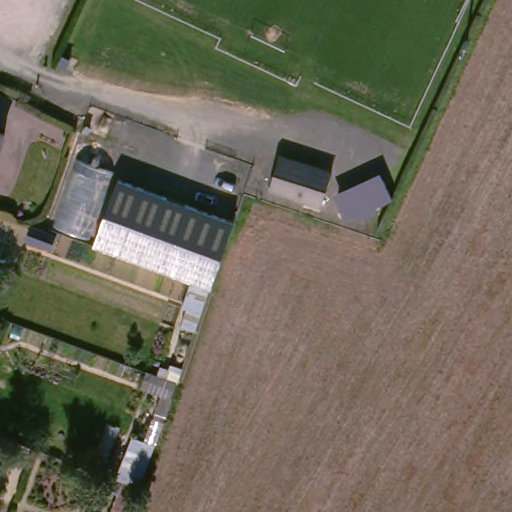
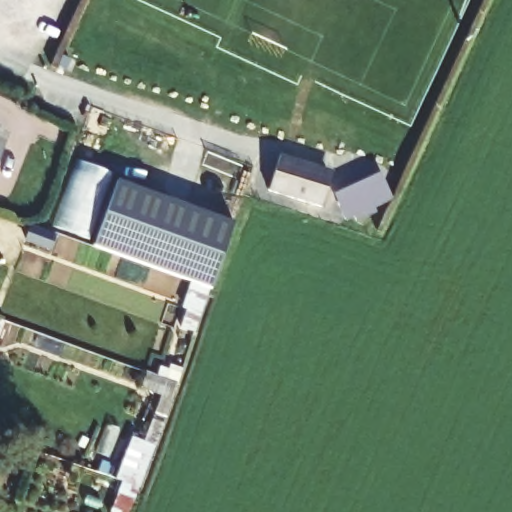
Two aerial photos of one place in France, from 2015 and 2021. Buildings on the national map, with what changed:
unchanged [(0,160),(0,132),(11,136),(0,160)]
unchanged [(338,174),(330,199),(280,182),(289,157),(338,174)]
unchanged [(400,200),(353,220),(341,194),(385,172),(400,200)]
unchanged [(186,327),(195,302),(191,300),(199,280),(101,243),(127,179),(235,219),(215,286),(201,332),(186,327)]
unchanged [(170,388),(165,401),(135,390),(140,377),(170,388)]

